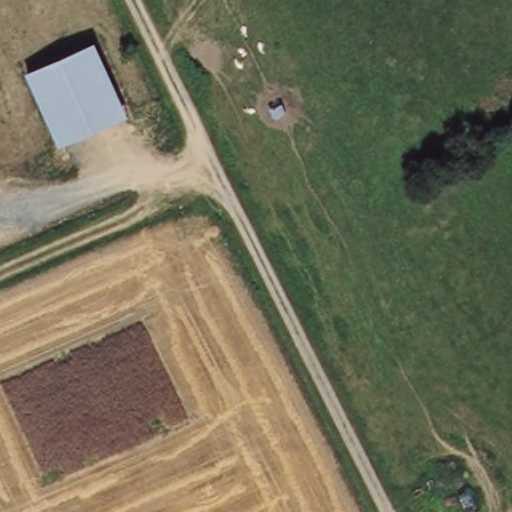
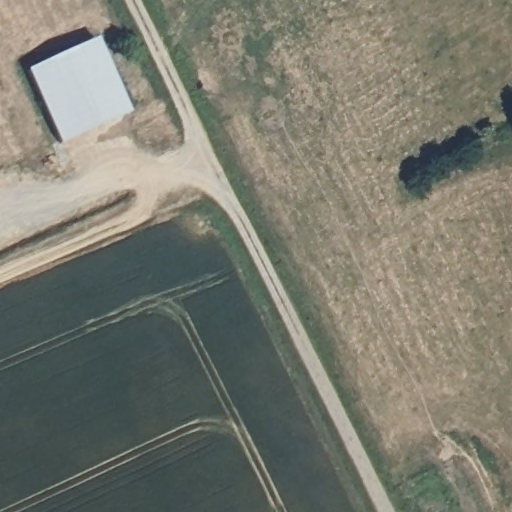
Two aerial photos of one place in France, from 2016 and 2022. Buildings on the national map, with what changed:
unchanged [(130,119),(59,149),(26,73),(96,40),(130,119)]

